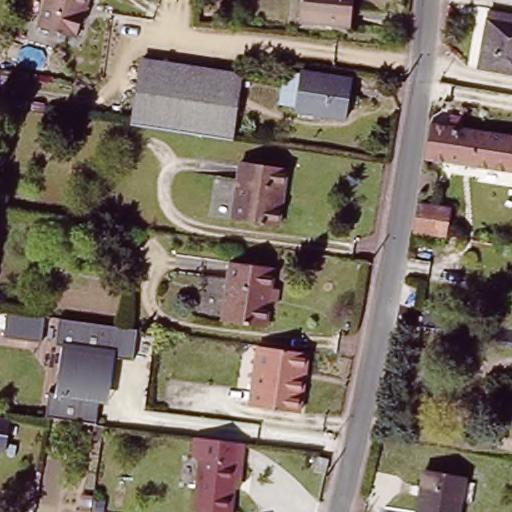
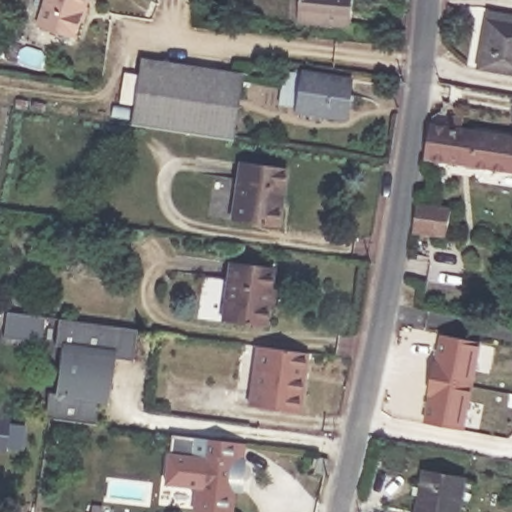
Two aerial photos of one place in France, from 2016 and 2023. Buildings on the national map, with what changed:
unchanged [(49,0),(90,0),(79,42),(40,30),(49,0)]
unchanged [(349,0),(346,31),(294,26),(296,0),(349,0)]
unchanged [(482,15),(512,21),(512,79),(472,72),(482,15)]
unchanged [(239,76),(229,140),(129,125),(137,61),(239,76)]
unchanged [(296,73),(347,80),(342,119),(291,112),(296,73)]
unchanged [(437,128),(439,116),(452,118),(450,130),(512,139),(512,174),(415,161),(420,125),(437,128)]
unchanged [(240,164),(286,171),(277,230),(232,224),(240,164)]
unchanged [(417,205),(452,210),(447,239),(412,233),(417,205)]
unchanged [(261,330),(219,324),(227,265),(270,271),(267,290),(274,291),(272,310),(264,309),(261,330)]
unchanged [(40,317),(37,338),(7,334),(10,313),(40,317)]
unchanged [(136,330),(132,359),(114,357),(109,391),(100,389),(95,426),(45,419),(44,419),(48,391),(55,392),(62,345),(55,344),(59,319),(136,330)]
new [(430,365),(433,366),(439,336),(476,344),(467,388),(427,381),(430,365)]
unchanged [(307,353),(298,413),(249,406),(257,346),(307,353)]
new [(467,388),(459,432),(422,426),(427,397),(425,396),(427,381),(467,388)]
unchanged [(0,455),(0,423),(16,426),(10,456),(0,455)]
unchanged [(239,437),(237,467),(195,462),(199,432),(239,437)]
unchanged [(302,468),(304,457),(314,458),(312,469),(302,468)]
unchanged [(235,487),(235,496),(227,495),(226,512),(189,512),(195,462),(237,467),(235,487)]
unchanged [(420,474),(460,481),(455,512),(413,512),(420,474)]

